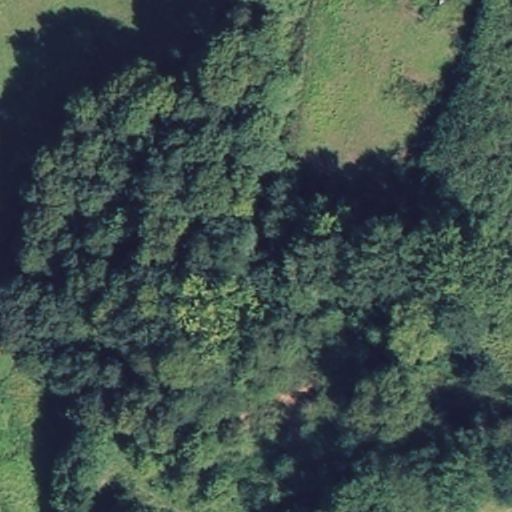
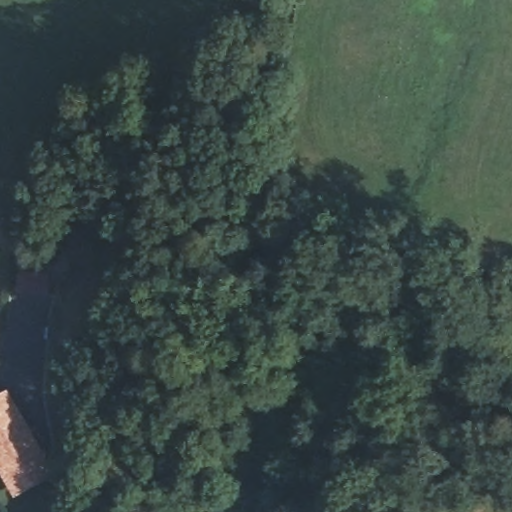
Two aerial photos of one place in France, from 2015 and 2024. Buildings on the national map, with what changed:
new [(11,499),(0,478),(0,393),(6,390),(54,475),(11,499)]

